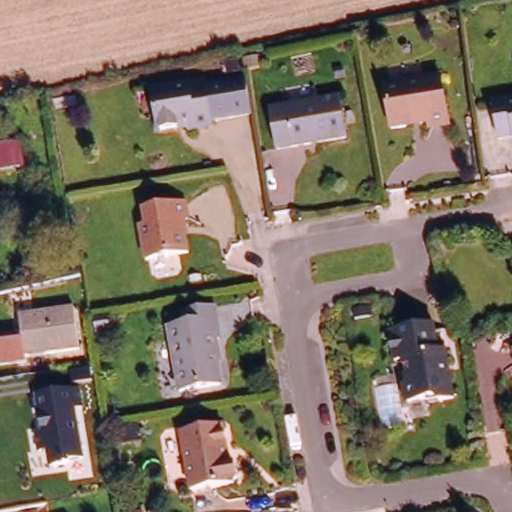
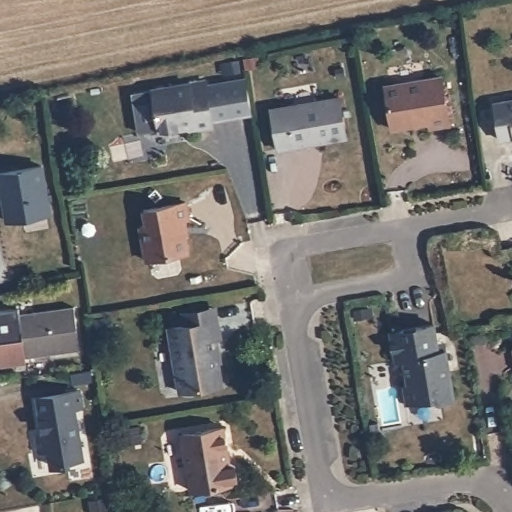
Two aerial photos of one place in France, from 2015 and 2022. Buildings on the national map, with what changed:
unchanged [(431,78),(440,124),(420,129),(420,125),(383,133),(375,90),(431,78)]
unchanged [(208,81),(209,85),(247,80),(253,118),(215,123),(216,131),(160,138),(153,89),(208,81)]
unchanged [(332,97),(340,137),(272,151),(265,111),(332,97)]
unchanged [(510,139),(495,141),(490,105),(512,101),(512,145),(511,145),(510,139)]
demolished [(18,161),(0,167),(0,144),(13,140),(18,161)]
new [(1,192),(0,192),(0,172),(44,164),(52,214),(7,221),(1,192)]
unchanged [(140,259),(135,226),(140,225),(138,209),(179,201),(182,218),(176,219),(181,251),(140,259)]
unchanged [(80,346),(0,364),(0,315),(76,305),(80,346)]
unchanged [(213,336),(216,351),(212,352),(217,382),(177,390),(167,326),(184,323),(182,310),(211,305),(213,317),(216,335),(213,336)]
unchanged [(431,349),(439,347),(447,389),(433,392),(428,390),(400,396),(396,379),(400,375),(395,354),(387,355),(383,333),(426,323),(431,349)]
unchanged [(75,386),(86,458),(48,465),(36,394),(75,386)]
unchanged [(220,426),(225,461),(230,464),(232,478),(228,483),(187,491),(179,434),(220,426)]

